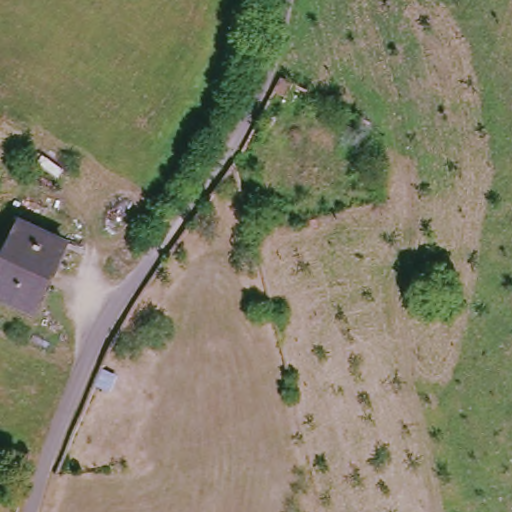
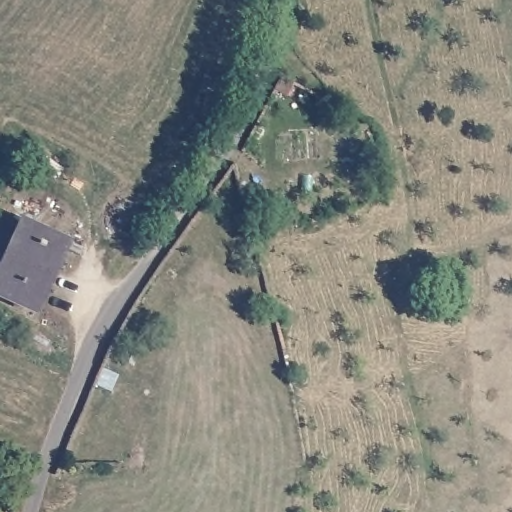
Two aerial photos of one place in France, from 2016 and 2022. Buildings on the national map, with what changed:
unchanged [(288,99),(272,90),(277,78),(295,85),(288,99)]
unchanged [(0,296),(0,265),(18,220),(64,239),(33,310),(0,296)]

